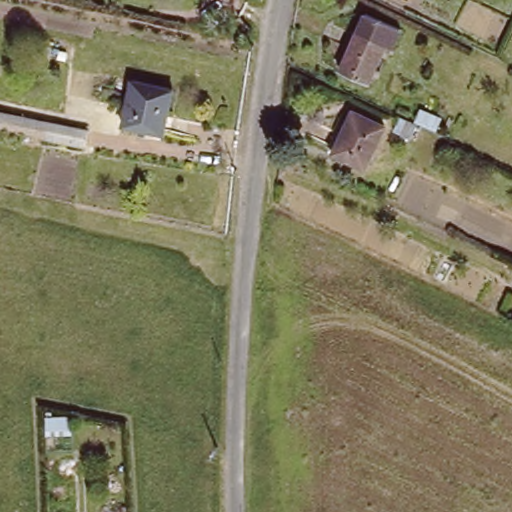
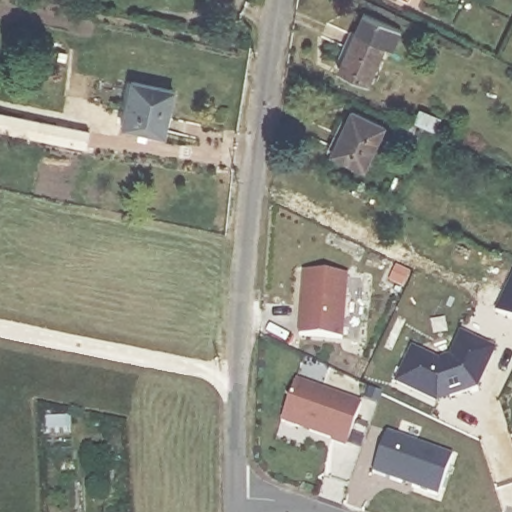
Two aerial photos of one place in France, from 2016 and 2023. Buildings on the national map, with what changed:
unchanged [(366,11),(405,30),(397,50),(389,45),(373,86),(339,70),(366,11)]
demolished [(446,104),(427,95),(434,81),(454,91),(446,104)]
unchanged [(134,83),(174,90),(164,136),(123,129),(134,83)]
demolished [(84,132),(34,124),(0,117),(0,97),(88,112),(84,132)]
unchanged [(356,109),(389,125),(368,162),(334,146),(356,109)]
unchanged [(434,132),(414,123),(422,109),(442,119),(434,132)]
new [(85,147),(36,139),(0,132),(0,112),(89,127),(85,147)]
new [(306,273),(349,276),(344,338),(301,335),(306,273)]
new [(496,311),(512,276),(512,319),(496,311)]
new [(413,347),(439,359),(451,356),(461,332),(497,348),(478,390),(436,402),(397,383),(413,347)]
new [(364,404),(347,448),(332,443),(333,440),(284,422),(299,381),(364,404)]
new [(387,435),(453,457),(439,497),(374,474),(387,435)]
unchanged [(108,500),(138,498),(139,512),(108,512),(108,500)]

